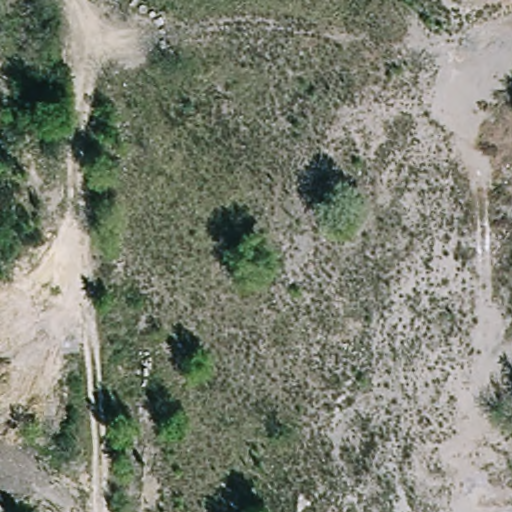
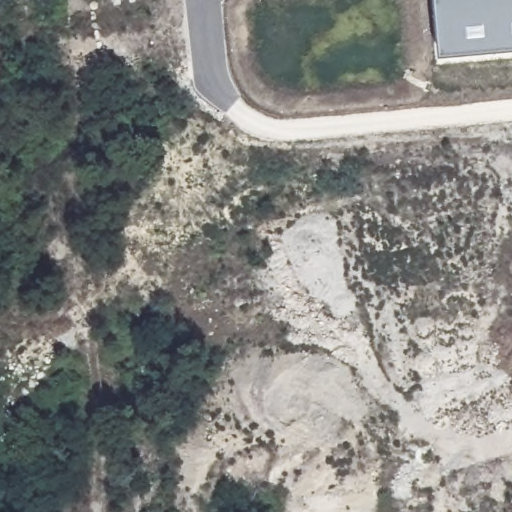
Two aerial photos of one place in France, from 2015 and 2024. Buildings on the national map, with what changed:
new [(512,51),(442,57),(437,0),(512,0),(512,51)]

